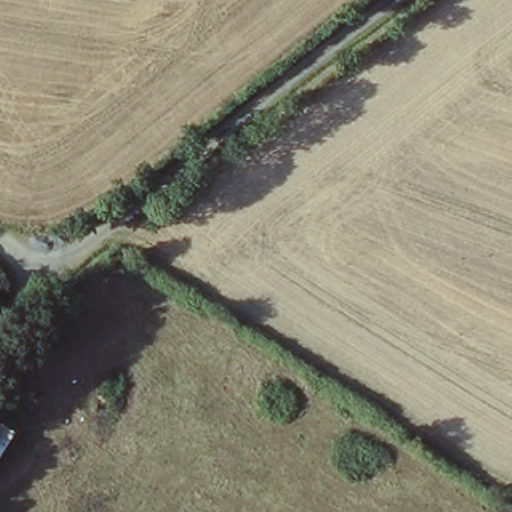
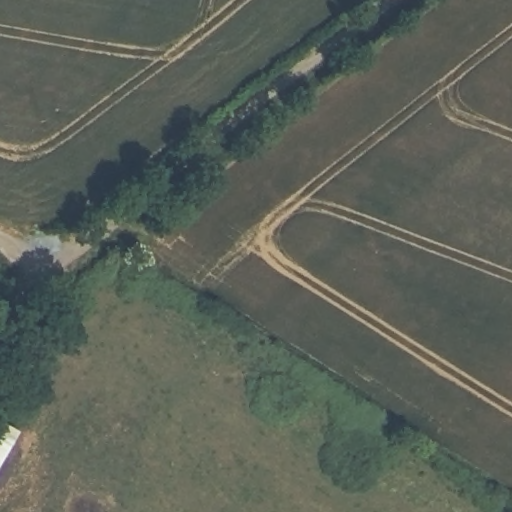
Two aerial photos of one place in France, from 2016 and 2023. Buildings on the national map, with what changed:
unchanged [(0,459),(0,426),(13,435),(0,459)]

